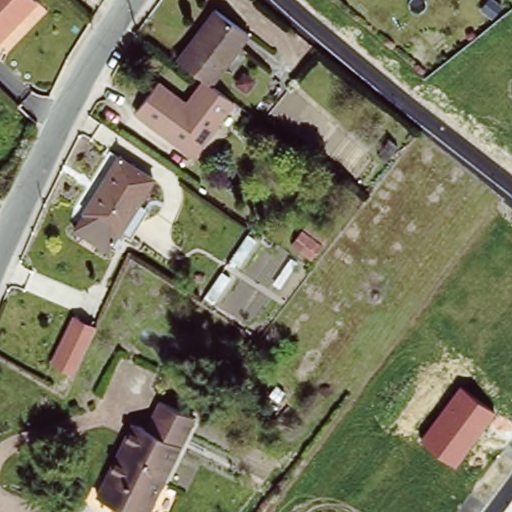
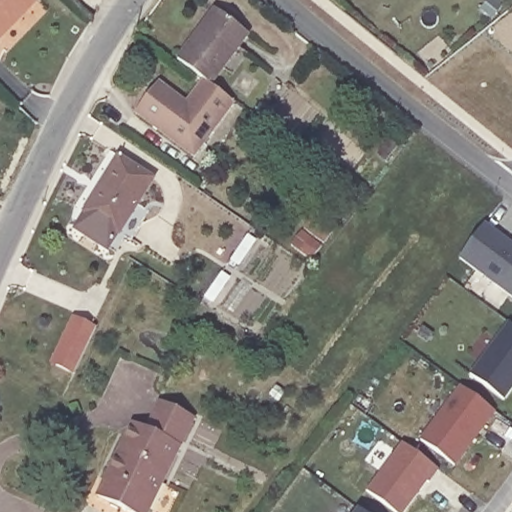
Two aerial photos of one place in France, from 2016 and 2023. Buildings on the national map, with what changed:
unchanged [(38,0),(0,36),(0,0),(38,0)]
new [(492,0),(502,8),(494,18),(484,10),(492,0)]
unchanged [(208,79),(182,59),(222,8),(254,33),(214,84),(208,79)]
unchanged [(195,156),(137,111),(160,82),(189,104),(208,79),(214,84),(238,103),(195,156)]
unchanged [(112,244),(77,221),(80,217),(122,151),(157,174),(115,240),(112,244)]
new [(512,242),(512,295),(459,256),(485,222),(512,242)]
unchanged [(49,357),(72,311),(95,322),(73,368),(49,357)]
new [(512,324),(512,390),(504,401),(468,375),(508,321),(512,324)]
unchanged [(418,438),(460,383),(497,412),(455,467),(418,438)]
unchanged [(125,433),(130,424),(136,427),(144,431),(160,399),(194,416),(160,482),(146,512),(135,512),(97,492),(125,433)]
new [(402,442),(439,469),(427,486),(425,483),(405,512),(394,512),(365,492),(402,442)]
new [(360,508),(365,512),(357,512),(360,508)]

